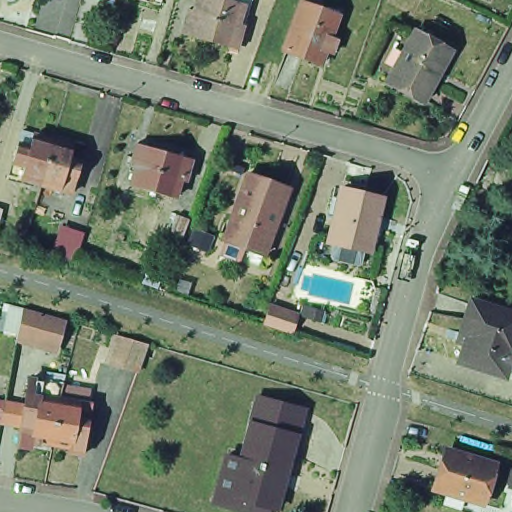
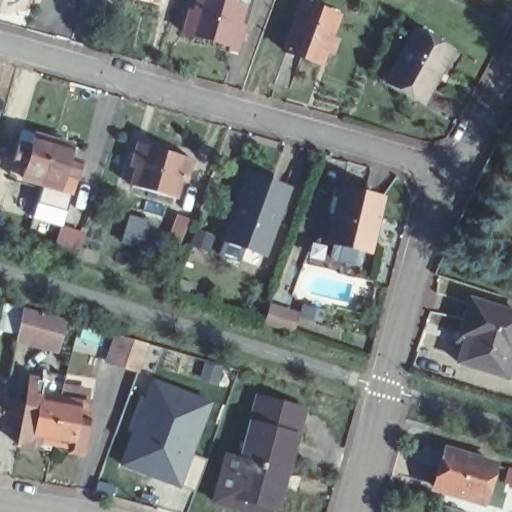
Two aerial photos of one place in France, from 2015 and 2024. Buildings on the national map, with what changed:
unchanged [(137,0),(157,0),(156,5),(144,2),(137,0)]
unchanged [(180,37),(187,14),(193,15),(197,0),(207,0),(220,4),(221,0),(252,0),(243,30),(237,53),(180,37)]
unchanged [(329,54),(321,51),(316,65),(280,51),(297,3),(335,16),(326,39),(333,42),(329,54)]
unchanged [(412,26),(448,46),(419,97),(383,78),(412,26)]
unchanged [(5,170),(14,139),(26,142),(30,130),(49,135),(36,179),(5,170)]
unchanged [(57,185),(37,179),(36,179),(49,135),(50,136),(70,141),(66,153),(77,157),(72,176),(68,188),(57,185)]
unchanged [(189,155),(182,178),(176,176),(171,194),(127,182),(132,163),(126,161),(132,139),(189,155)]
unchanged [(215,255),(220,241),(245,175),(285,190),(260,255),(241,248),(236,263),(215,255)]
unchanged [(378,204),(366,252),(325,243),(331,218),(335,220),(341,195),(378,204)]
unchanged [(2,210),(0,219),(0,209),(2,210)]
unchanged [(190,219),(181,245),(168,241),(177,215),(190,219)]
unchanged [(76,264),(56,258),(65,230),(85,235),(76,264)]
unchanged [(505,352),(499,372),(452,357),(458,338),(452,336),(465,295),(512,309),(512,332),(512,347),(510,353),(505,352)]
unchanged [(270,306),(296,315),(291,332),(264,323),(270,306)]
unchanged [(23,307),(66,320),(57,351),(17,338),(23,307)]
unchanged [(326,312),(322,323),(308,318),(312,307),(326,312)]
unchanged [(148,344),(138,373),(110,364),(119,336),(148,344)]
unchanged [(18,440),(21,421),(25,401),(30,374),(42,376),(42,374),(64,378),(60,395),(51,439),(33,436),(31,443),(18,440)]
new [(117,466),(131,430),(140,433),(159,383),(212,404),(193,454),(206,458),(193,494),(117,466)]
unchanged [(251,419),(250,419),(257,393),(305,405),(300,425),(299,424),(299,426),(296,426),(295,431),(251,419)]
unchanged [(60,395),(92,400),(83,449),(68,447),(69,442),(51,439),(60,395)]
unchanged [(295,431),(297,431),(278,504),(271,502),(231,491),(241,456),(251,419),(295,431)]
unchanged [(231,491),(271,502),(268,512),(213,497),(227,452),(241,456),(231,491)]
unchanged [(490,470),(479,509),(433,496),(445,456),(490,470)]

